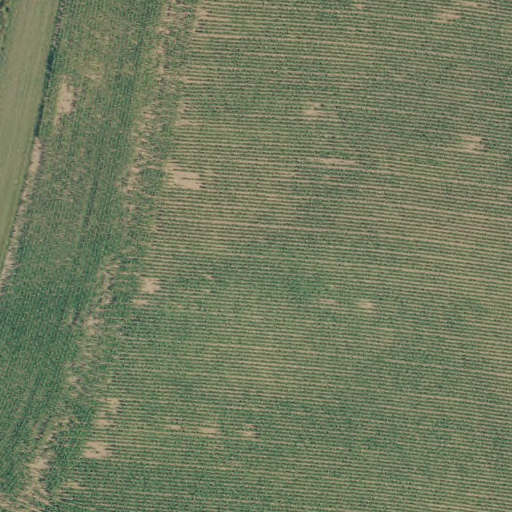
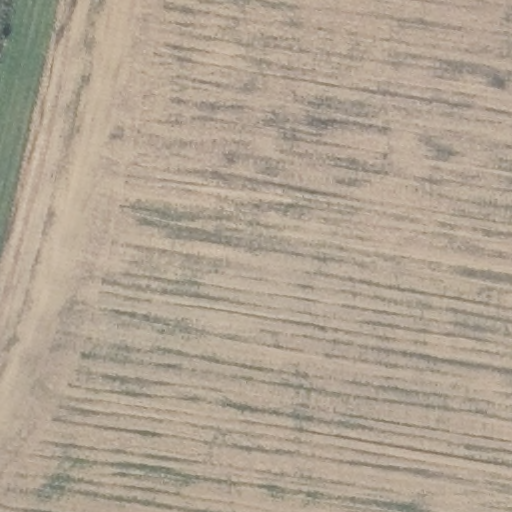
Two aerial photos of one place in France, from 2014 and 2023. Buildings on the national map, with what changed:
[]

